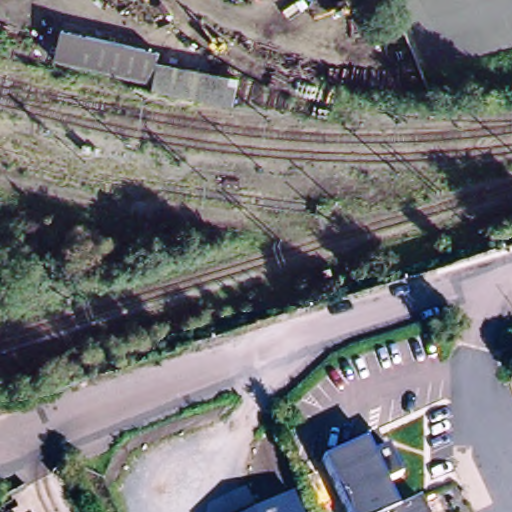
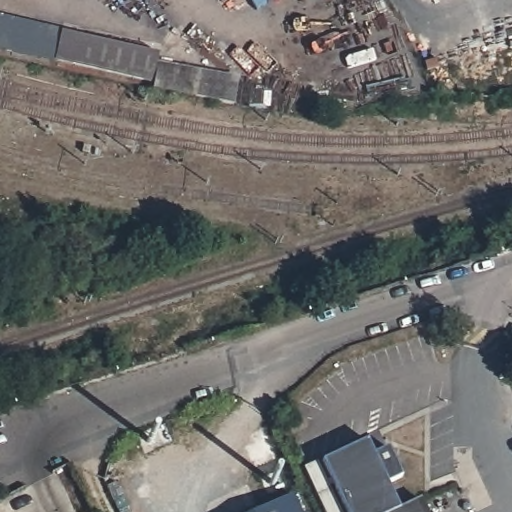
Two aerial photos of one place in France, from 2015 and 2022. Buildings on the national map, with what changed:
new [(57,60),(0,49),(0,16),(64,32),(57,60)]
unchanged [(161,53),(159,63),(240,79),(236,107),(153,90),(155,81),(57,60),(64,32),(161,53)]
unchanged [(326,466),(370,446),(378,464),(385,461),(392,474),(385,478),(401,512),(347,512),(326,466)]
unchanged [(290,493),(299,512),(249,512),(290,493)]
unchanged [(424,503),(428,512),(404,512),(424,503)]

